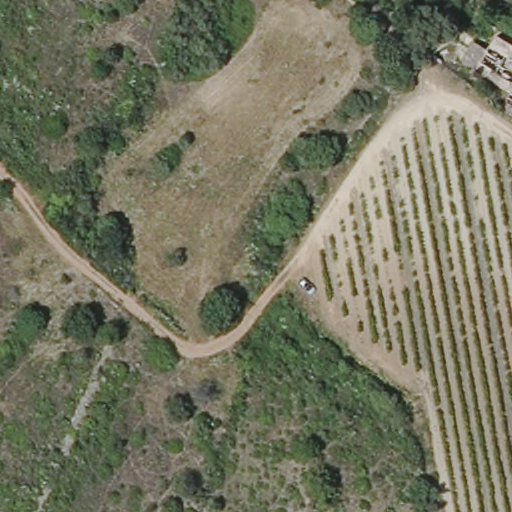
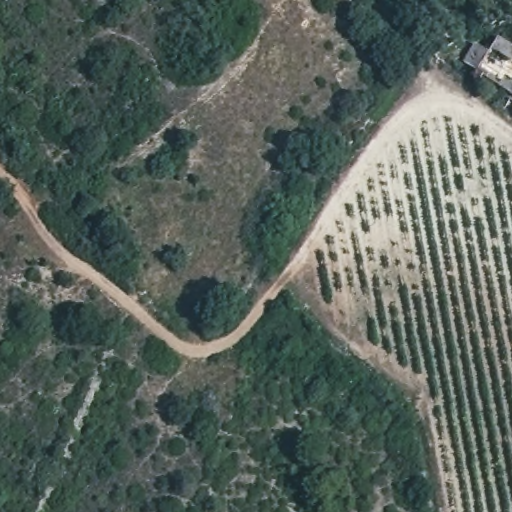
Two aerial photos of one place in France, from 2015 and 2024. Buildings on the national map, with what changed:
unchanged [(462,63),(474,44),(487,52),(497,38),(512,47),(512,94),(462,63)]
unchanged [(502,106),(509,97),(512,99),(512,114),(505,109),(502,106)]

